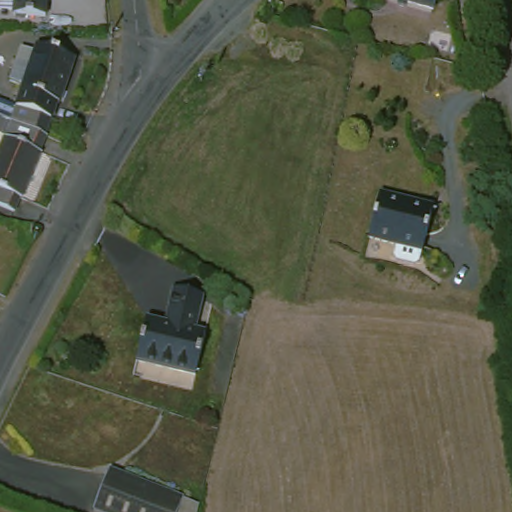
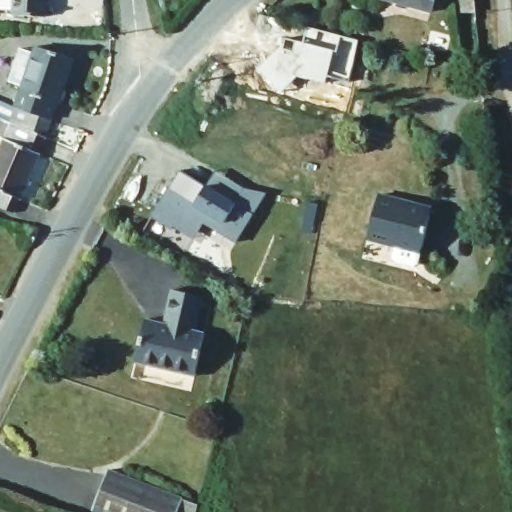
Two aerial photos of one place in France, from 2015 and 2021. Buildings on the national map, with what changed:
unchanged [(17,17),(17,16),(17,12),(1,12),(1,0),(52,0),(52,18),(17,17)]
unchanged [(380,1),(380,0),(437,0),(431,18),(380,1)]
unchanged [(453,20),(453,0),(470,0),(471,19),(453,20)]
unchanged [(76,62),(60,103),(42,143),(6,121),(35,47),(76,62)]
unchanged [(49,147),(27,185),(12,215),(0,209),(0,118),(6,121),(42,143),(49,147)]
new [(206,185),(217,171),(244,189),(265,194),(232,242),(202,221),(195,231),(175,218),(170,226),(150,213),(180,168),(206,185)]
unchanged [(434,206),(421,248),(418,259),(414,260),(397,254),(394,252),(396,243),(367,236),(379,192),(434,206)]
unchanged [(210,338),(194,382),(132,362),(146,319),(167,325),(178,297),(208,307),(198,335),(210,338)]
unchanged [(180,500),(177,512),(93,512),(104,477),(180,500)]

